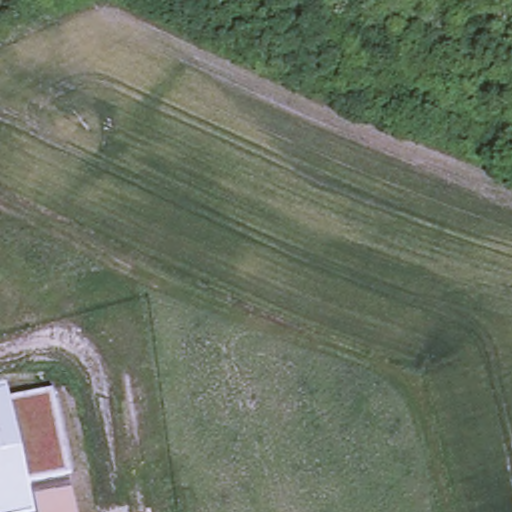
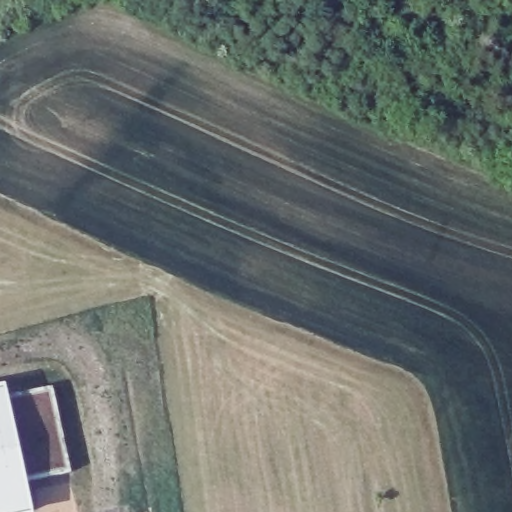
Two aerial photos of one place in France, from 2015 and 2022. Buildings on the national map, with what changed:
unchanged [(5,384),(8,395),(52,386),(72,474),(27,483),(33,512),(0,512),(0,385),(5,384)]

